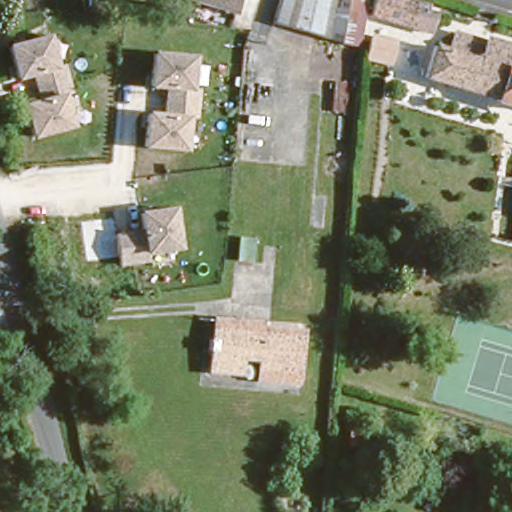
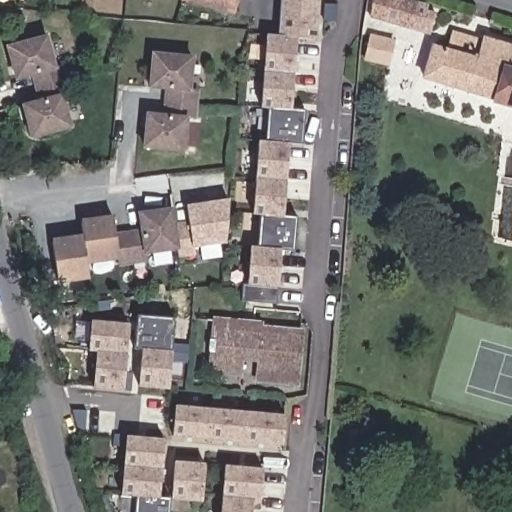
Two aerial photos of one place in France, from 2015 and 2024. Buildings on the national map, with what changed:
unchanged [(208,0),(236,0),(234,7),(208,0)]
new [(243,301),(244,285),(249,284),(252,247),(259,247),(262,214),(255,214),(260,142),(267,142),(269,107),(263,107),(268,36),(281,36),(283,0),(319,0),(317,39),(298,37),(293,109),(305,110),(303,145),(290,145),(285,215),(297,216),(294,250),(282,249),(278,304),(243,301)]
demolished [(360,47),(340,43),(273,23),(280,0),(367,0),(360,47)]
unchanged [(430,34),(370,16),(372,0),(409,0),(428,5),(427,11),(435,14),(430,34)]
unchanged [(31,140),(21,105),(40,100),(35,76),(14,82),(4,45),(48,34),(59,71),(66,70),(73,91),(65,94),(75,127),(31,140)]
unchanged [(389,65),(366,60),(371,35),(394,41),(389,65)]
unchanged [(424,72),(433,42),(478,55),(484,35),(512,43),(512,100),(424,72)]
unchanged [(192,91),(200,90),(199,113),(189,112),(186,152),(143,150),(145,115),(164,116),(167,91),(148,90),(152,51),(194,55),(192,91)]
new [(229,199),(225,244),(193,247),(194,255),(179,258),(177,252),(180,251),(176,222),(188,220),(185,205),(229,199)]
unchanged [(140,231),(137,212),(174,207),(180,251),(147,256),(148,262),(120,267),(119,259),(115,232),(140,231)]
new [(81,235),(79,219),(112,214),(115,232),(119,259),(87,265),(90,280),(59,285),(51,239),(81,235)]
new [(139,385),(143,350),(134,348),(138,315),(174,317),(169,388),(139,385)]
unchanged [(292,377),(253,374),(254,354),(235,352),(234,368),(205,365),(210,315),(239,317),(239,320),(296,326),(292,377)]
new [(94,386),(98,352),(89,351),(93,320),(130,323),(124,390),(94,386)]
new [(284,445),(173,435),(176,405),(287,415),(284,445)]
new [(171,500),(170,512),(134,512),(135,495),(121,494),(126,435),(165,440),(160,495),(174,496),(177,461),(204,463),(200,503),(171,500)]
new [(221,512),(225,467),(264,470),(260,512),(221,512)]

